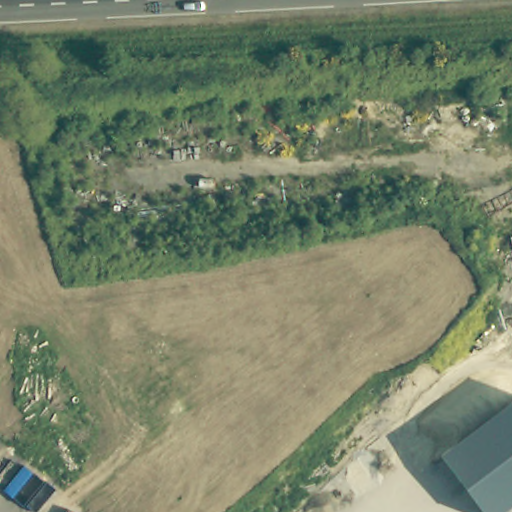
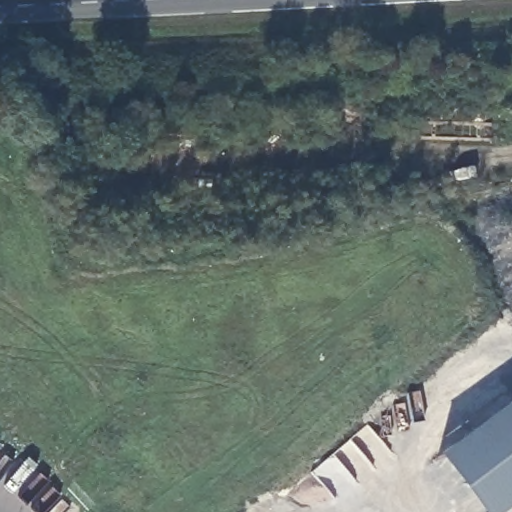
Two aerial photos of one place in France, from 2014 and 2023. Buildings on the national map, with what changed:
unchanged [(512,401),(512,504),(501,512),(482,512),(438,456),(512,401)]

